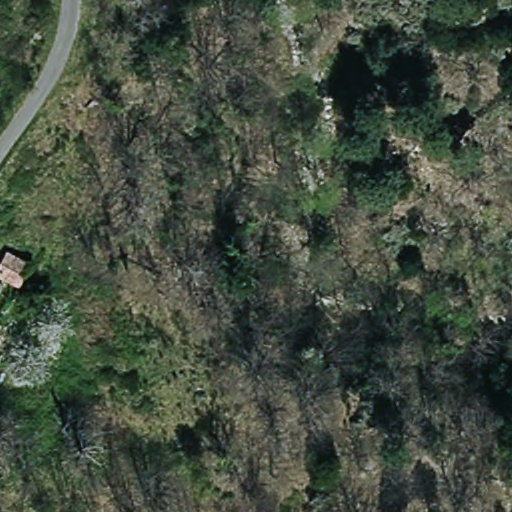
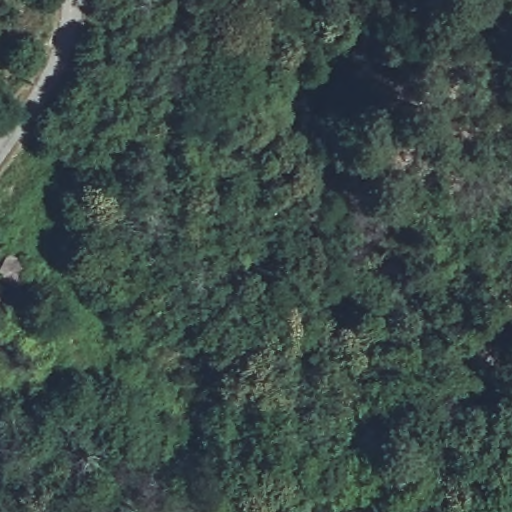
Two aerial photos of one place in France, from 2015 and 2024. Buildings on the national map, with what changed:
unchanged [(10,256),(34,267),(22,290),(0,278),(0,274),(10,256)]

